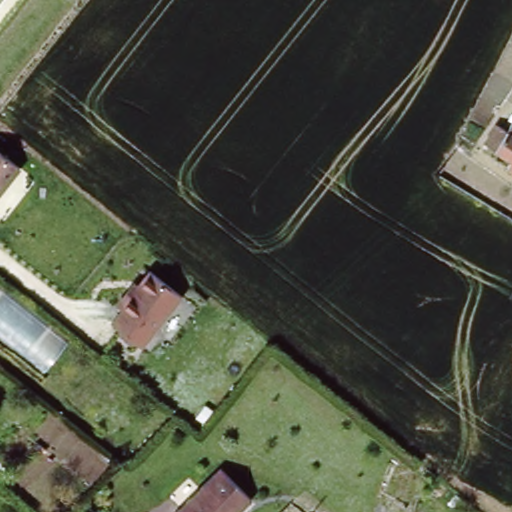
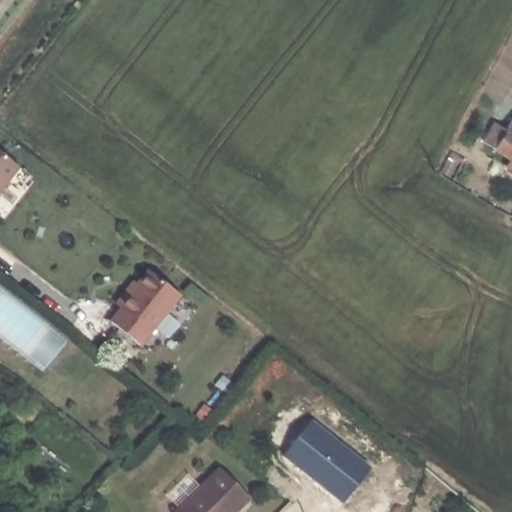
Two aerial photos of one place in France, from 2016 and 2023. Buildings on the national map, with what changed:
unchanged [(484,140),(495,121),(507,127),(512,120),(512,160),(495,149),(484,140)]
unchanged [(20,167),(0,192),(0,150),(20,167)]
unchanged [(120,302),(117,299),(137,278),(140,281),(152,268),(181,295),(138,342),(110,316),(122,304),(120,302)]
new [(344,502),(284,455),(312,420),(372,466),(344,502)]
unchanged [(247,499),(233,512),(164,512),(216,465),(247,499)]

